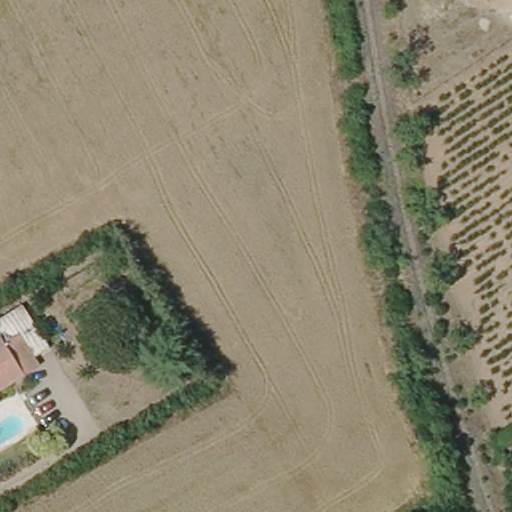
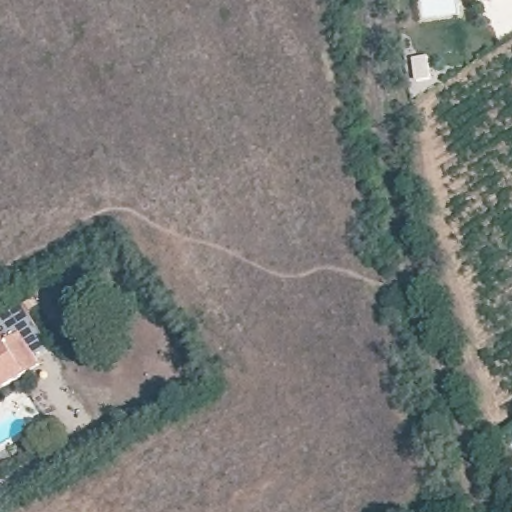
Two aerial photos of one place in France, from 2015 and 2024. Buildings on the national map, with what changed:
unchanged [(491,0),(499,0),(494,4),(491,0)]
unchanged [(0,385),(0,337),(3,335),(7,339),(22,331),(41,361),(0,385)]

